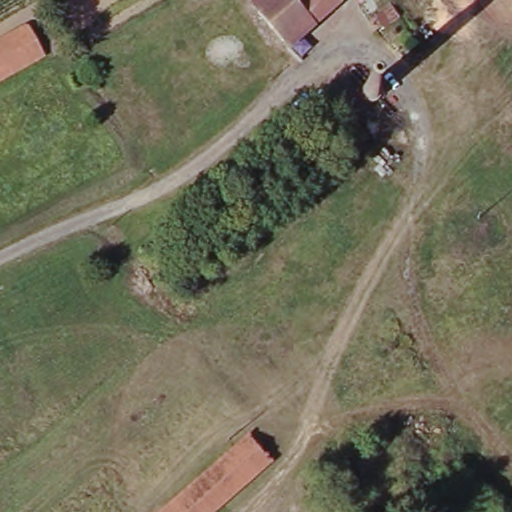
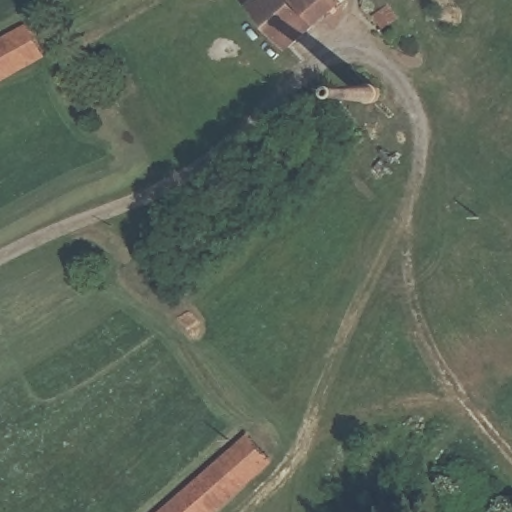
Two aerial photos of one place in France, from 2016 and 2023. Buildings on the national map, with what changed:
unchanged [(255,14),(271,0),(340,0),(346,7),(293,55),(255,14)]
unchanged [(50,62),(0,90),(0,43),(32,25),(50,62)]
unchanged [(216,512),(160,512),(248,434),(273,463),(216,512)]

